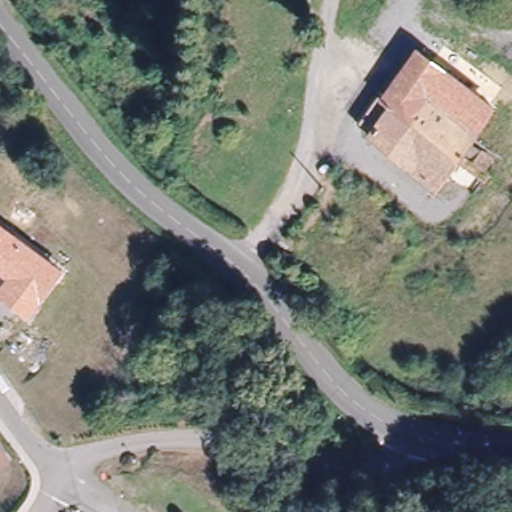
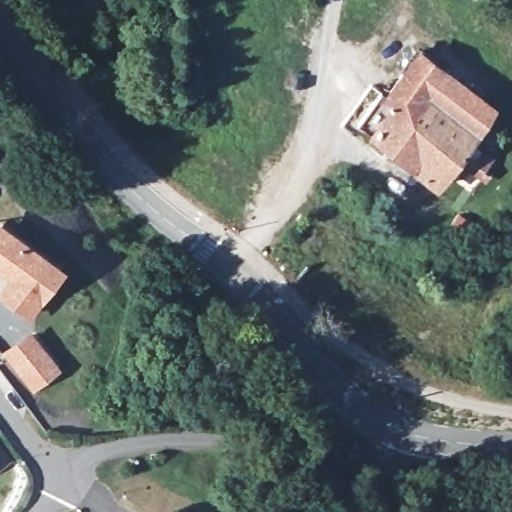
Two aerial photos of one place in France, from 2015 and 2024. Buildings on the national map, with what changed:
unchanged [(500,111),(440,189),(354,124),(381,92),(388,96),(424,52),(500,111)]
unchanged [(65,270),(30,319),(0,297),(0,287),(8,277),(0,271),(0,220),(65,270)]
new [(29,330),(59,371),(32,394),(0,352),(29,330)]
unchanged [(12,458),(0,468),(0,442),(12,458)]

